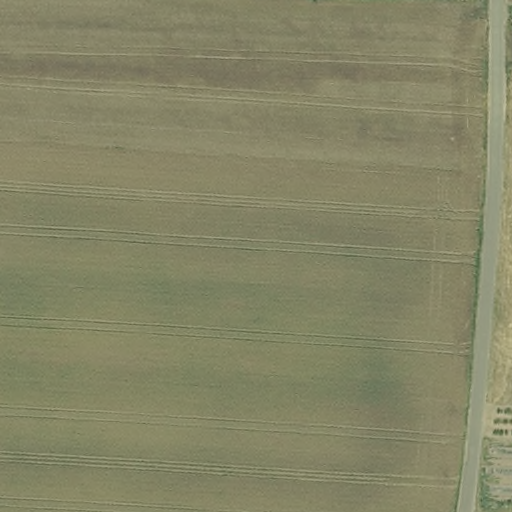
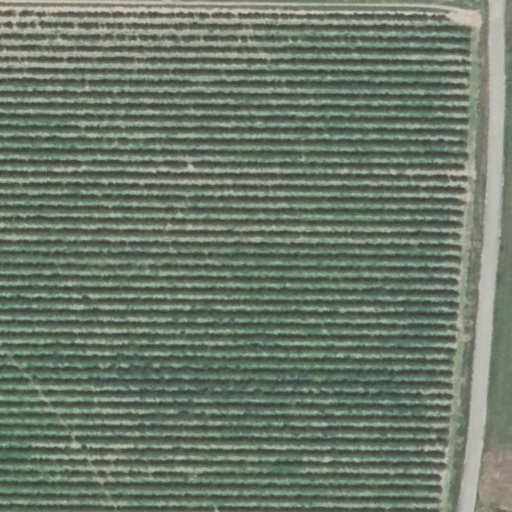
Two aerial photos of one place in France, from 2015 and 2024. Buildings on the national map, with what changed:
unchanged [(426,0),(479,0),(479,1),(426,0)]

